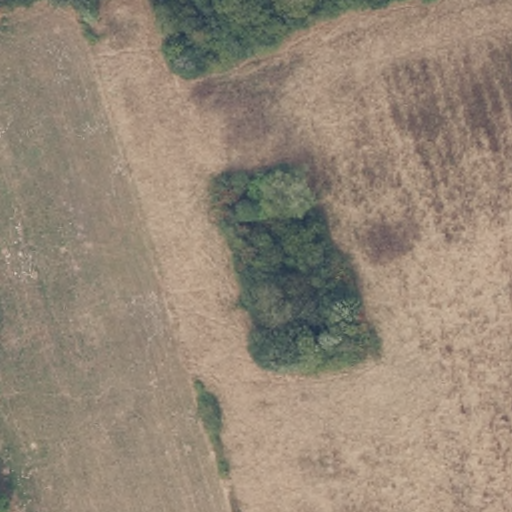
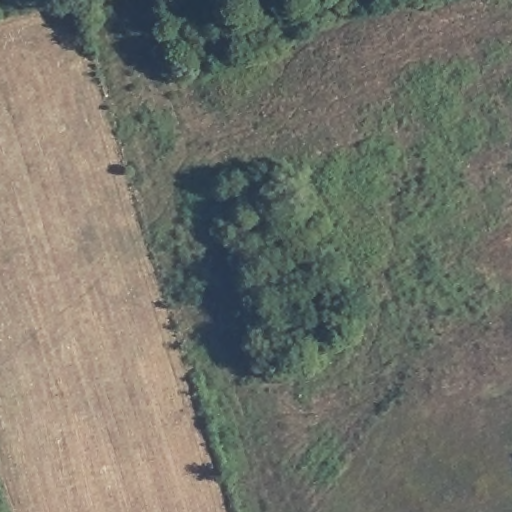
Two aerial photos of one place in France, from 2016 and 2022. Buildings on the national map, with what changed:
unchanged [(264,217),(255,187),(274,181),(283,210),(264,217)]

